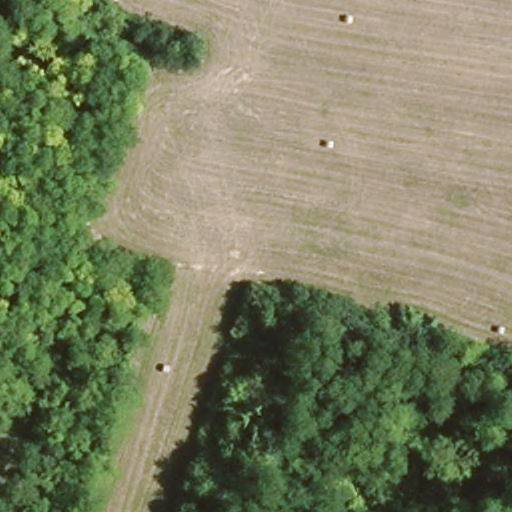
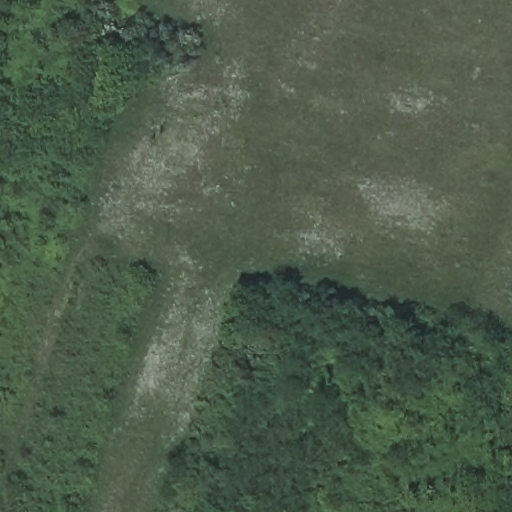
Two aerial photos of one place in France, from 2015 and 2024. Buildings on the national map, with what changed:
[]

